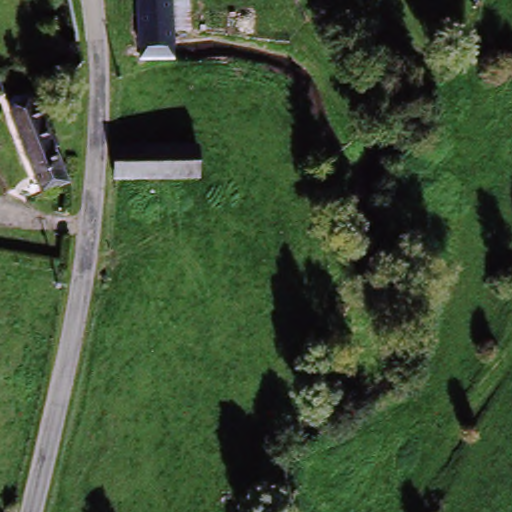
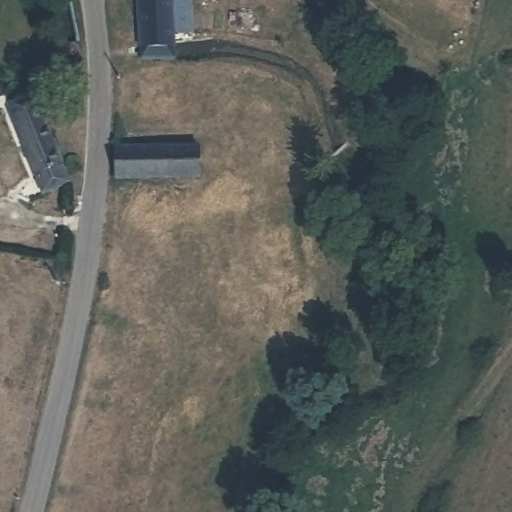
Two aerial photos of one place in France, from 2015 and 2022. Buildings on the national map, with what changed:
unchanged [(191,32),(175,33),(175,59),(138,61),(135,0),(189,0),(191,32)]
unchanged [(49,192),(38,169),(30,172),(7,121),(37,106),(70,183),(49,192)]
unchanged [(112,185),(113,168),(114,157),(194,157),(197,157),(197,185),(112,185)]

